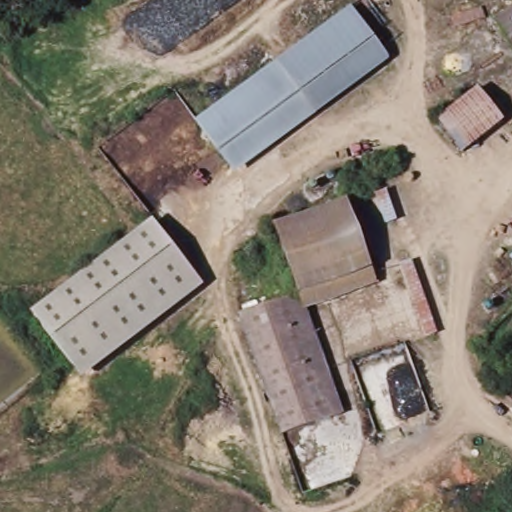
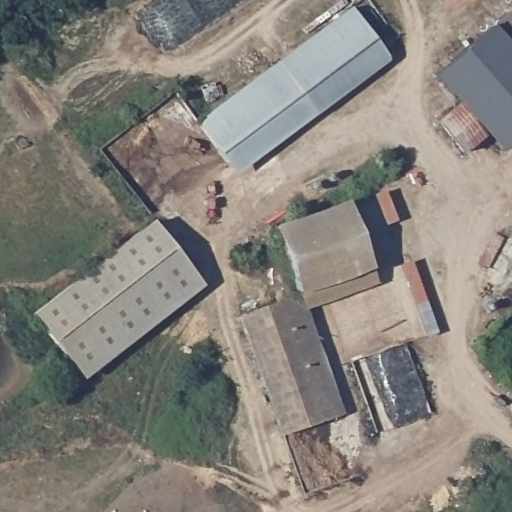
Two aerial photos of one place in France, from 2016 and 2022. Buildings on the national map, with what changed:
unchanged [(392,58),(237,174),(195,122),(352,6),(392,58)]
unchanged [(500,21),(512,11),(512,37),(500,21)]
new [(501,152),(487,136),(505,121),(499,112),(480,91),(462,106),(436,76),(500,21),(512,37),(512,143),(501,152)]
unchanged [(505,121),(466,155),(453,139),(441,124),(480,91),(499,112),(505,121)]
unchanged [(272,229),(326,206),(341,199),(369,263),(301,294),(284,255),(272,229)]
unchanged [(160,227),(203,278),(87,375),(44,323),(160,227)]
unchanged [(355,415),(294,440),(241,320),(301,294),(355,415)]

